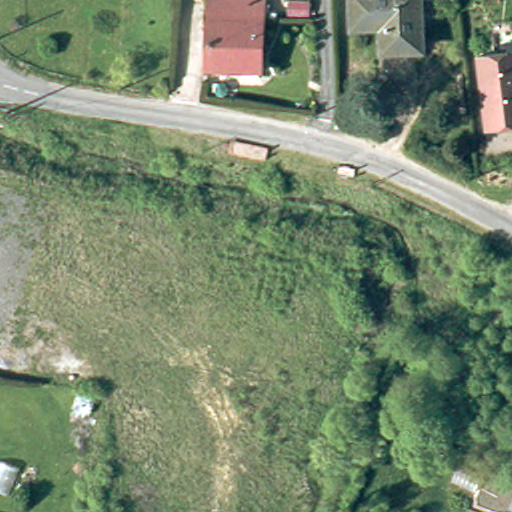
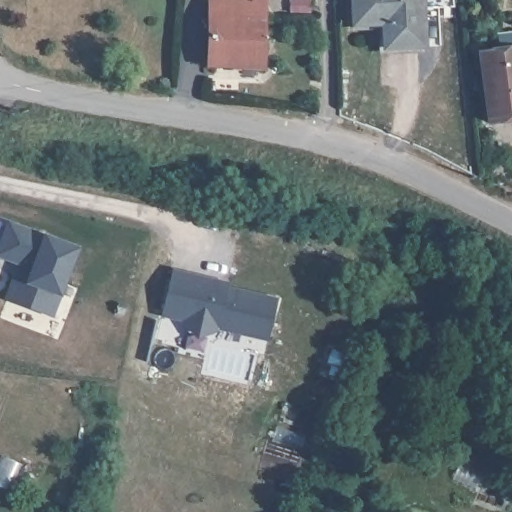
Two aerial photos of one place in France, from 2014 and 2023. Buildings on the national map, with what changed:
unchanged [(270,0),(269,20),(219,18),(220,0),(270,0)]
unchanged [(429,54),(390,54),(390,30),(359,31),(359,0),(428,0),(429,54)]
unchanged [(242,83),(242,76),(216,75),(219,18),(269,20),(266,77),(254,76),(253,84),(242,83)]
unchanged [(487,38),(512,36),(512,113),(497,115),(495,108),(487,38)]
new [(17,265),(0,259),(0,239),(7,219),(42,234),(80,247),(60,298),(52,318),(4,299),(17,265)]
new [(230,282),(230,287),(278,297),(267,342),(218,330),(197,338),(180,321),(162,317),(172,269),(230,282)]

